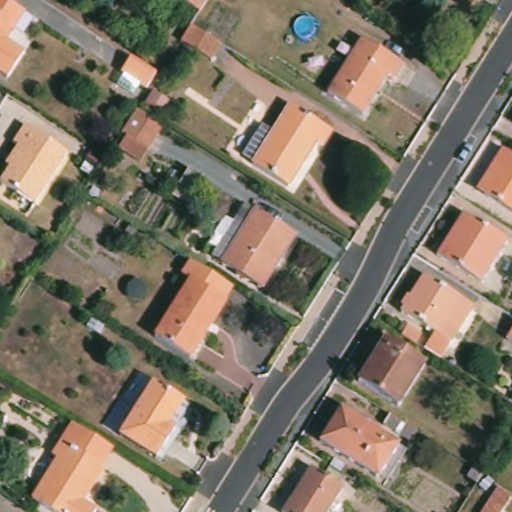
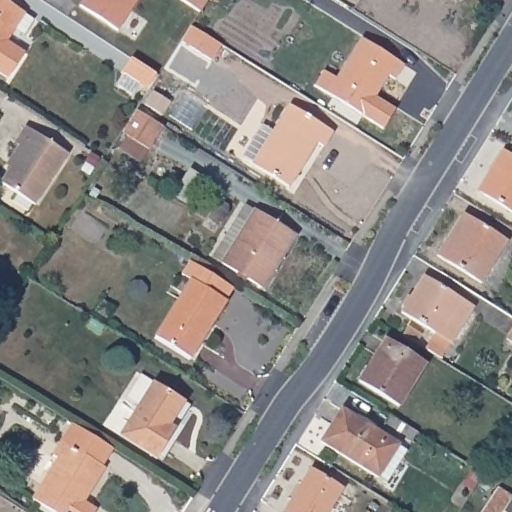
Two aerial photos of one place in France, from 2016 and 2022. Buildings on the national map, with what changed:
unchanged [(8,29),(0,41),(0,0),(18,13),(18,14),(27,21),(18,36),(8,29)]
new [(83,0),(137,0),(117,31),(79,7),(83,0)]
unchanged [(196,0),(209,0),(205,6),(196,0)]
unchanged [(219,55),(189,36),(199,20),(229,39),(219,55)]
unchanged [(393,81),(387,77),(362,116),(326,94),(361,39),(402,66),(393,81)]
unchanged [(162,69),(153,83),(128,67),(137,53),(162,69)]
unchanged [(176,97),(169,108),(151,97),(158,86),(176,97)]
unchanged [(330,142),(323,138),(296,181),(247,152),(268,120),(280,127),(297,99),(339,126),(330,142)]
unchanged [(169,121),(155,143),(127,126),(142,104),(169,121)]
unchanged [(0,189),(0,182),(17,154),(9,149),(21,131),(62,157),(31,208),(0,189)]
unchanged [(476,194),(501,154),(512,160),(512,216),(476,194)]
unchanged [(481,283),(437,257),(463,214),(507,241),(481,283)]
unchanged [(261,294),(222,269),(230,255),(220,248),(236,222),(248,229),(255,216),(294,241),(261,294)]
unchanged [(219,301),(222,303),(186,360),(150,338),(185,280),(177,275),(185,262),(227,288),(219,301)]
unchanged [(418,350),(422,343),(428,334),(395,314),(419,277),(468,308),(446,345),(440,354),(436,361),(418,350)]
unchanged [(394,335),(401,324),(416,333),(410,345),(394,335)]
unchanged [(398,412),(357,387),(383,344),(424,370),(398,412)]
unchanged [(165,429),(171,432),(152,462),(116,440),(149,387),(178,406),(165,429)]
unchanged [(376,484),(311,443),(331,409),(398,450),(376,484)]
unchanged [(408,433),(402,444),(374,427),(381,416),(408,433)]
unchanged [(88,512),(37,512),(27,506),(53,464),(47,461),(56,446),(68,428),(106,452),(95,471),(98,473),(79,507),(88,512)]
unchanged [(279,512),(306,468),(339,489),(325,512),(279,512)]
unchanged [(484,512),(500,489),(511,496),(500,512),(484,512)]

